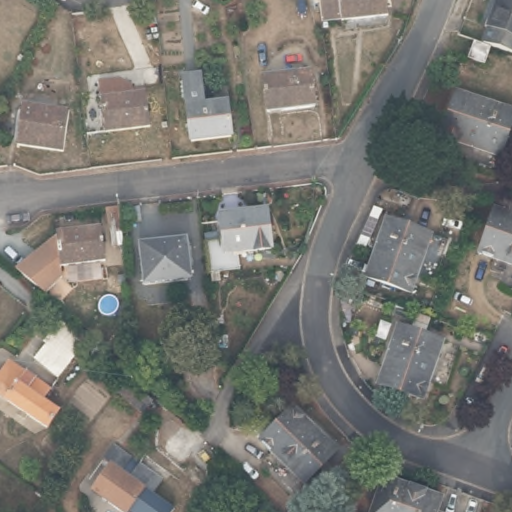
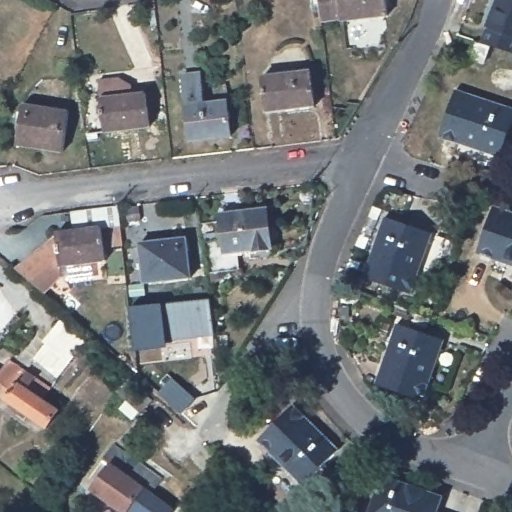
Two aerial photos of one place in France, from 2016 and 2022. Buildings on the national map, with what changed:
unchanged [(320,0),(387,0),(389,18),(322,26),(320,0)]
unchanged [(511,59),(486,50),(483,50),(478,48),(484,33),(482,32),(493,0),(512,0),(512,56),(511,59)]
unchanged [(464,65),(470,49),(485,54),(479,71),(464,65)]
unchanged [(311,72),(315,107),(267,114),(263,77),(311,72)]
unchanged [(203,110),(225,107),(229,142),(190,147),(182,81),(200,79),(203,110)]
unchanged [(105,138),(100,85),(121,82),(132,90),(132,93),(146,92),(146,100),(150,132),(105,138)]
unchanged [(442,136),(457,90),(512,108),(512,122),(501,157),(442,136)]
unchanged [(70,111),(64,150),(18,144),(24,105),(70,111)]
unchanged [(480,253),(496,207),(512,212),(512,264),(480,253)]
unchanged [(220,219),(266,213),(271,254),(238,258),(240,275),(209,278),(205,247),(223,246),(220,219)]
unchanged [(366,277),(386,218),(432,234),(411,292),(366,277)]
unchanged [(97,232),(102,267),(57,272),(52,237),(97,232)]
unchanged [(57,272),(47,293),(14,268),(52,237),(57,272)]
unchanged [(186,237),(190,278),(145,283),(139,242),(186,237)]
new [(211,298),(216,335),(169,341),(170,347),(136,352),(131,307),(163,303),(211,298)]
unchanged [(47,340),(47,339),(63,318),(89,340),(72,360),(59,375),(35,355),(47,340)]
unchanged [(377,383),(397,323),(443,340),(423,398),(377,383)]
unchanged [(16,368),(42,388),(55,396),(48,407),(63,418),(51,437),(0,401),(0,374),(7,380),(16,368)]
unchanged [(143,412),(121,391),(131,377),(154,400),(143,412)]
unchanged [(338,454),(304,488),(259,445),(248,434),(262,420),(272,431),(294,410),(338,454)]
unchanged [(104,478),(95,472),(106,457),(124,471),(132,477),(156,495),(146,508),(137,502),(130,512),(99,512),(86,502),(104,478)]
unchanged [(440,512),(369,512),(382,475),(442,496),(437,511),(440,512)]

